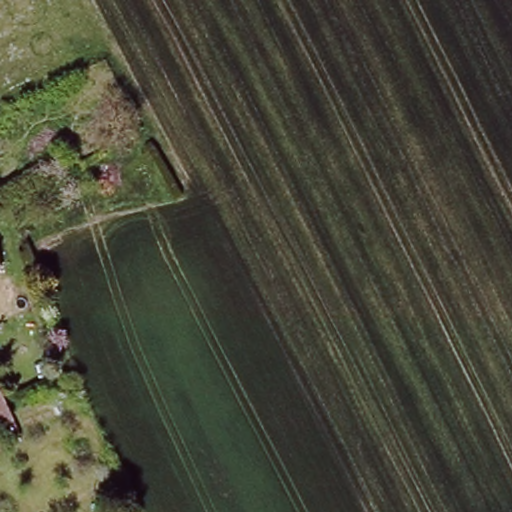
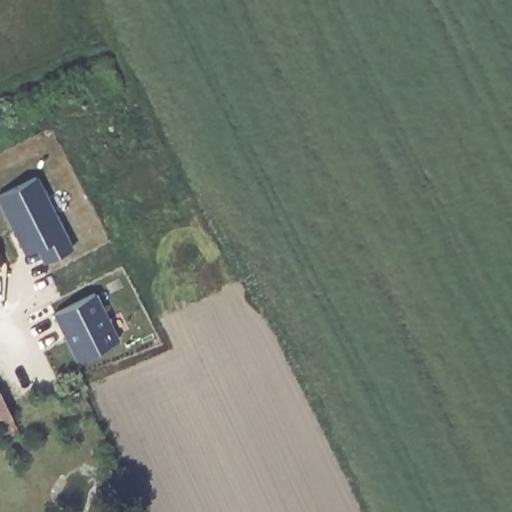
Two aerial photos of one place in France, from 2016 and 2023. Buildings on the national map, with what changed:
new [(38,177),(73,247),(43,261),(37,249),(25,254),(0,204),(0,195),(38,177)]
unchanged [(6,266),(0,269),(0,253),(6,266)]
new [(56,313),(97,294),(119,339),(76,360),(56,313)]
unchanged [(10,400),(24,431),(18,435),(9,417),(0,421),(0,389),(4,387),(10,400)]

